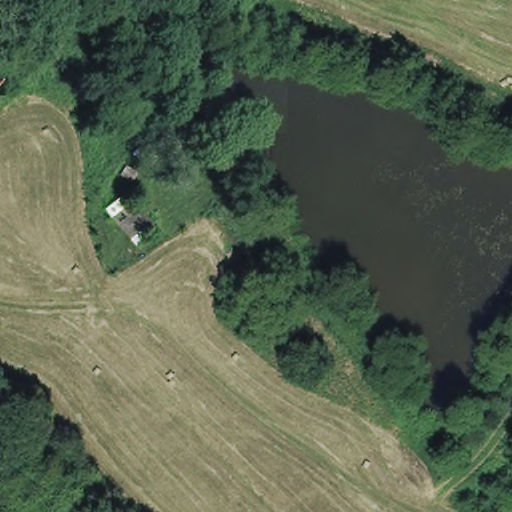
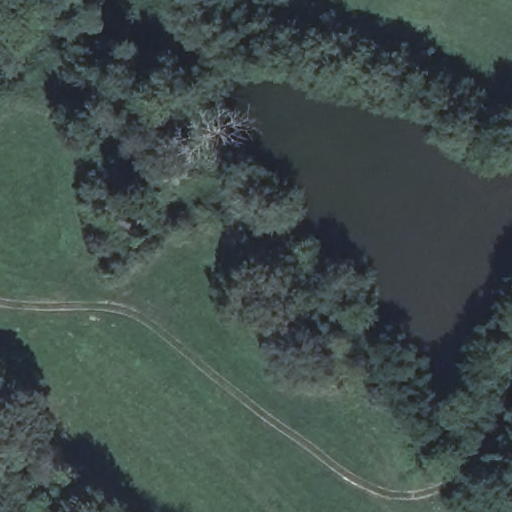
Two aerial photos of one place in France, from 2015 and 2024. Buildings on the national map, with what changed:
unchanged [(159,119),(175,139),(144,164),(128,149),(159,119)]

